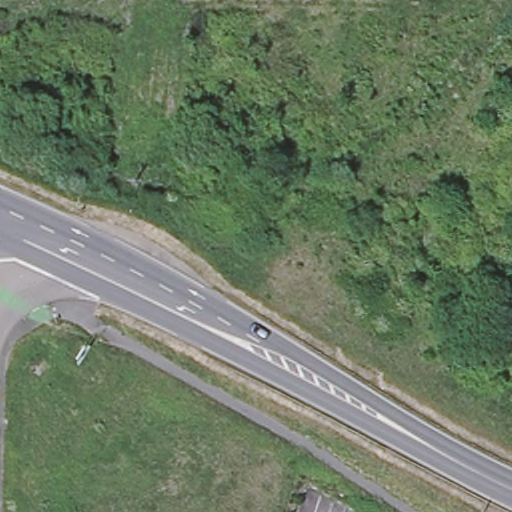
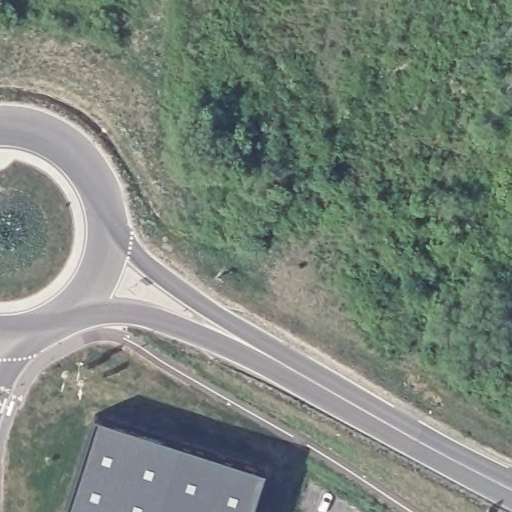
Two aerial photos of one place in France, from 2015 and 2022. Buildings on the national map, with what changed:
new [(264,472),(251,512),(63,512),(94,417),(264,472)]

